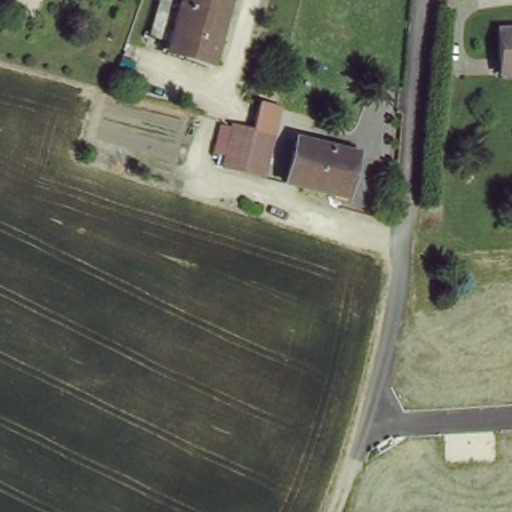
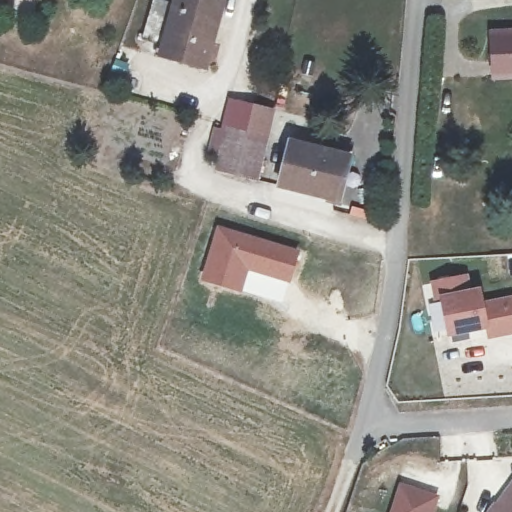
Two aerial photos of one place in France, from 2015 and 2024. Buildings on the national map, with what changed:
unchanged [(25,2),(17,0),(26,0),(25,2)]
unchanged [(185,0),(208,0),(230,8),(208,70),(164,55),(166,49),(147,42),(163,1),(182,7),(185,0)]
unchanged [(495,37),(512,37),(512,79),(497,81),(495,37)]
unchanged [(261,179),(204,166),(214,124),(246,131),(251,99),(277,104),(261,179)]
unchanged [(298,147),(350,163),(339,204),(285,189),(298,147)]
new [(300,249),(291,282),(250,270),(243,292),(202,278),(219,223),(300,249)]
new [(484,330),(447,337),(440,300),(435,301),(432,281),(470,272),(472,288),(481,286),(484,299),(512,294),(512,334),(488,339),(484,330)]
new [(487,512),(512,481),(512,512),(487,512)]
new [(440,496),(435,512),(390,512),(400,482),(440,496)]

